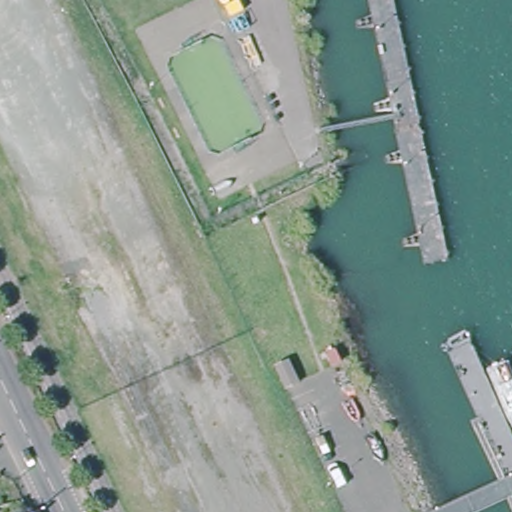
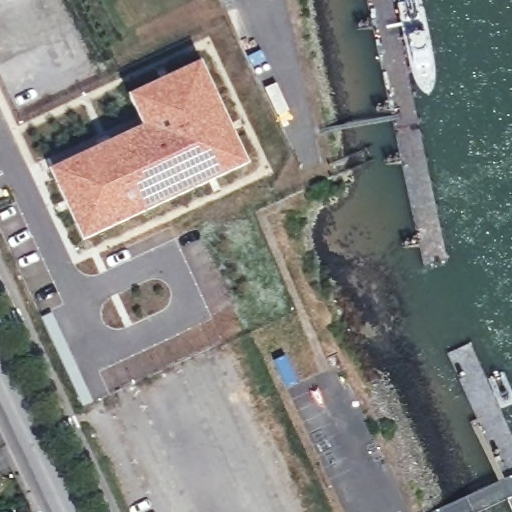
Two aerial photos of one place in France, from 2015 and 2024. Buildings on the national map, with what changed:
new [(249,161),(85,238),(52,167),(143,122),(129,91),(200,59),(249,161)]

